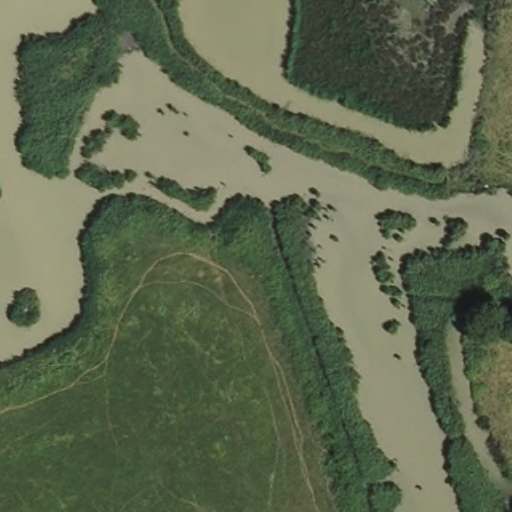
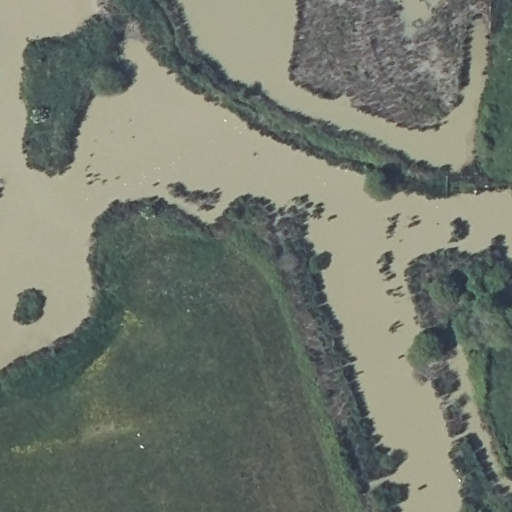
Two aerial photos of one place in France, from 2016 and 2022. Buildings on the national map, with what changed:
[]

